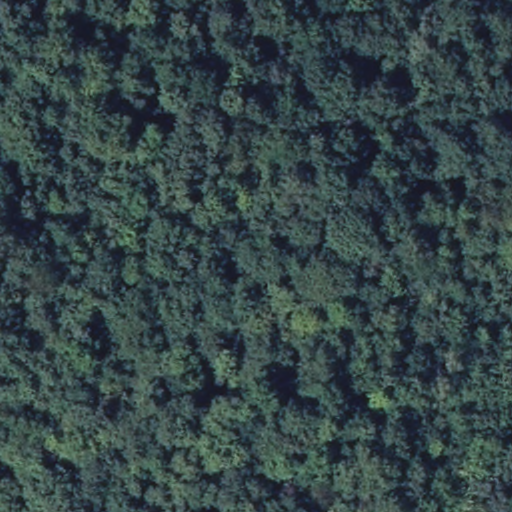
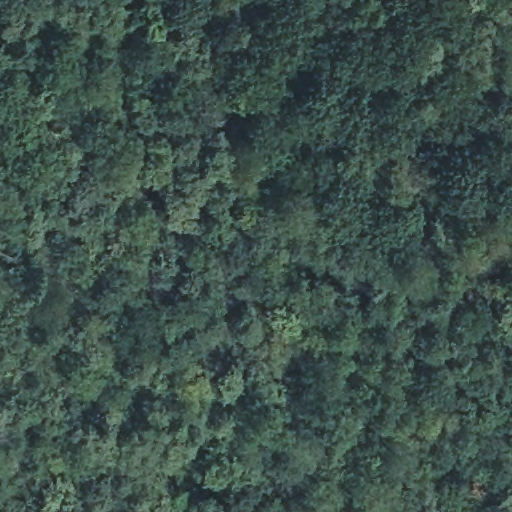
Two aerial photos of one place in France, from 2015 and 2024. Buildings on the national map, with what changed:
[]

